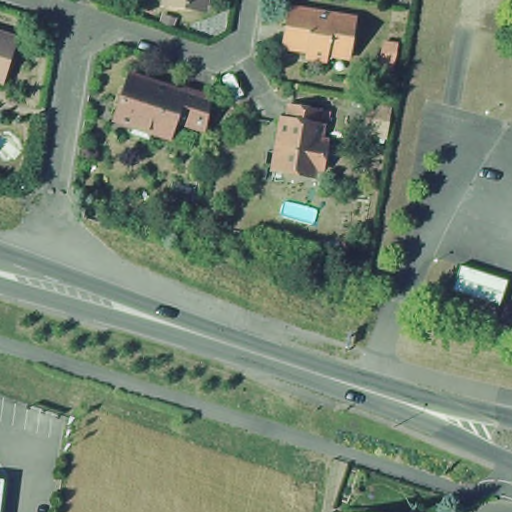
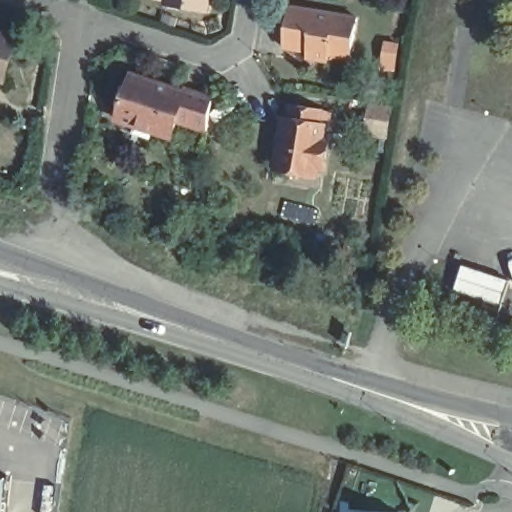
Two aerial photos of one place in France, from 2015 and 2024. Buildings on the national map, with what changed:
unchanged [(204,10),(187,7),(185,13),(163,10),(165,1),(159,0),(206,0),(204,10)]
unchanged [(279,10),(346,20),(339,60),(318,57),(316,63),(296,60),(297,54),(273,50),(279,10)]
unchanged [(0,87),(0,39),(0,40),(13,44),(0,87)]
unchanged [(120,74),(174,91),(175,89),(201,97),(196,130),(165,120),(160,137),(105,120),(120,74)]
unchanged [(366,109),(389,112),(387,125),(385,139),(363,135),(365,117),(366,109)]
unchanged [(311,155),(318,156),(313,183),(306,182),(306,185),(266,179),(273,133),(279,134),(281,119),(313,124),(310,140),(314,140),(311,155)]
unchanged [(495,312),(448,295),(457,269),(504,285),(495,312)]
unchanged [(3,480),(0,500),(0,479),(3,480)]

